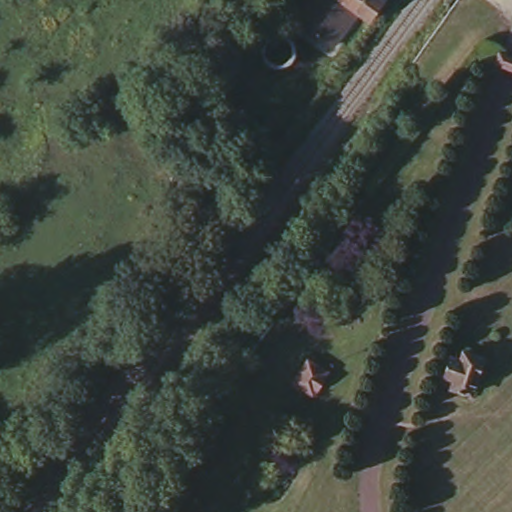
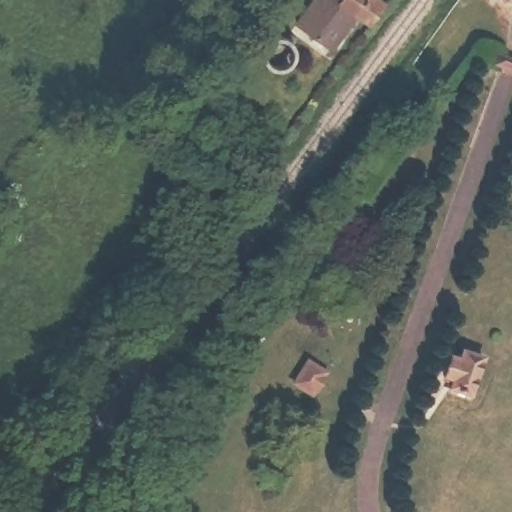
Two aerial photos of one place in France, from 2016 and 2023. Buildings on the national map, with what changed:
unchanged [(323,0),(391,0),(375,20),(365,13),(339,47),(307,22),(323,0)]
unchanged [(451,382),(456,372),(443,368),(452,350),(462,357),(468,346),(487,353),(471,392),(451,382)]
unchanged [(296,380),(313,356),(329,368),(312,391),(296,380)]

